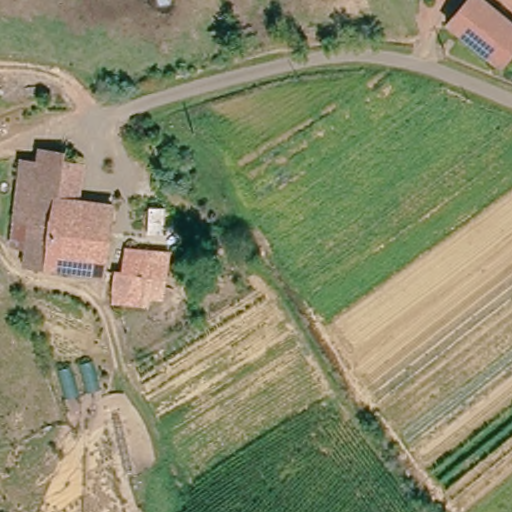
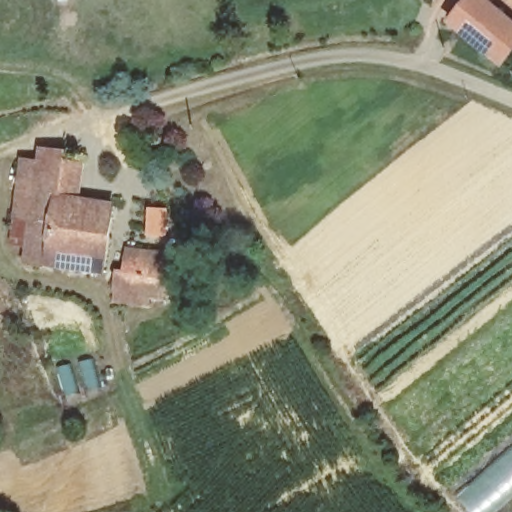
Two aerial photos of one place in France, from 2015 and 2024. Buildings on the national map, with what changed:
unchanged [(512,25),(512,69),(448,20),(462,0),(480,0),(512,25)]
unchanged [(62,148),(61,159),(114,167),(112,196),(61,189),(61,195),(115,204),(109,278),(27,265),(42,145),(62,148)]
unchanged [(171,274),(149,274),(147,298),(119,296),(119,279),(127,279),(129,259),(171,262),(171,274)]
new [(471,512),(456,493),(512,445),(512,499),(497,512),(471,512)]

